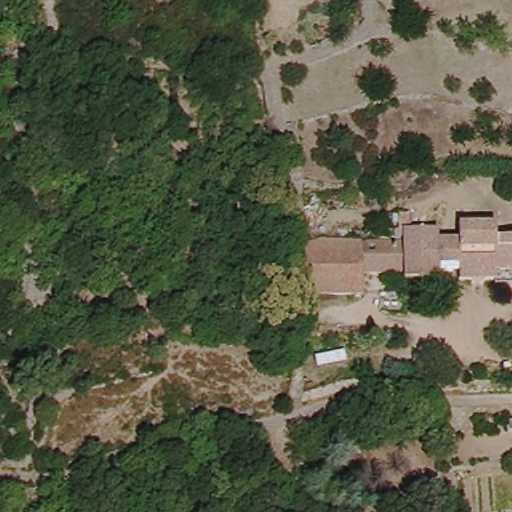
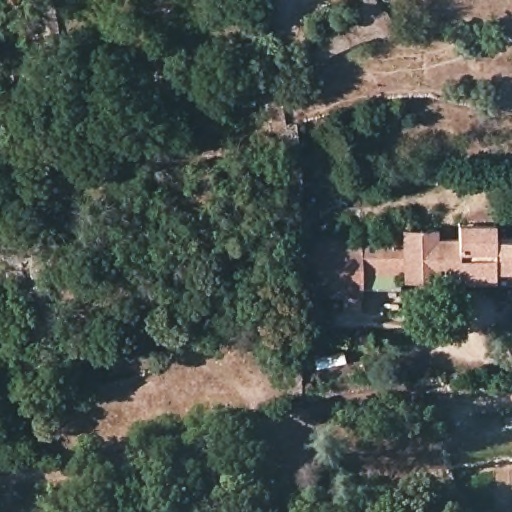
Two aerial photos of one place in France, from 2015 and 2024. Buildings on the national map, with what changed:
unchanged [(397,225),(436,226),(436,235),(452,235),(453,222),(492,222),(492,232),(512,232),(512,269),(495,270),(495,280),(453,280),(453,270),(435,270),(435,275),(360,275),(360,237),(395,236),(397,225)]
unchanged [(360,275),(360,296),(293,295),(295,235),(360,237),(360,275)]

